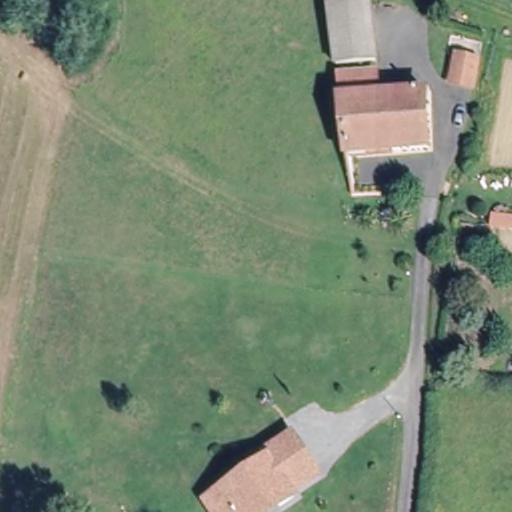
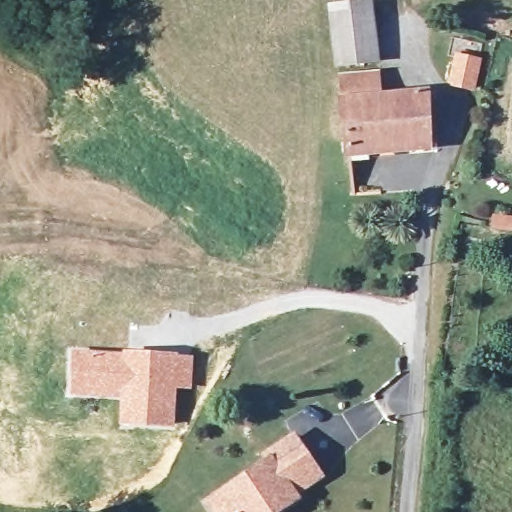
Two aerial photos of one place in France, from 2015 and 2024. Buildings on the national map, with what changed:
unchanged [(372,0),(379,56),(337,61),(330,0),(372,0)]
unchanged [(476,61),(472,79),(471,86),(449,82),(456,56),(476,61)]
unchanged [(338,69),(378,64),(381,90),(340,94),(338,69)]
unchanged [(424,85),(431,141),(347,150),(340,94),(381,90),(424,85)]
new [(70,347),(111,350),(144,350),(194,354),(193,389),(177,389),(175,427),(119,425),(119,399),(69,396),(70,347)]
unchanged [(209,500),(270,459),(267,453),(294,435),(319,473),(294,491),(296,495),(280,505),(271,512),(217,512),(209,500)]

